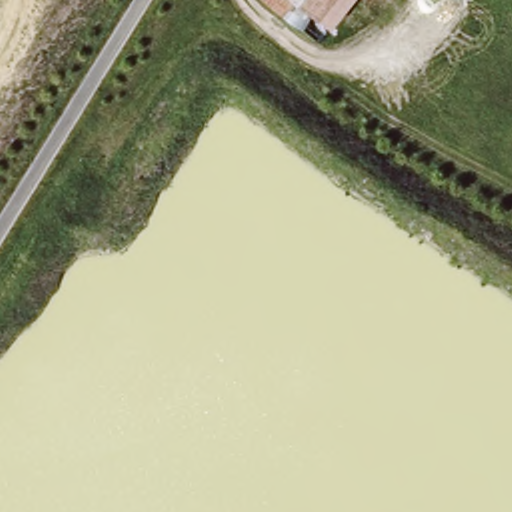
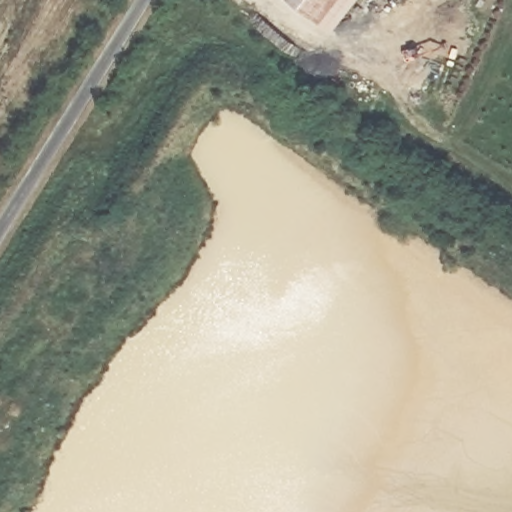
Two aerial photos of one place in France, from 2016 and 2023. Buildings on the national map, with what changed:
unchanged [(317,43),(270,0),(355,0),(317,43)]

